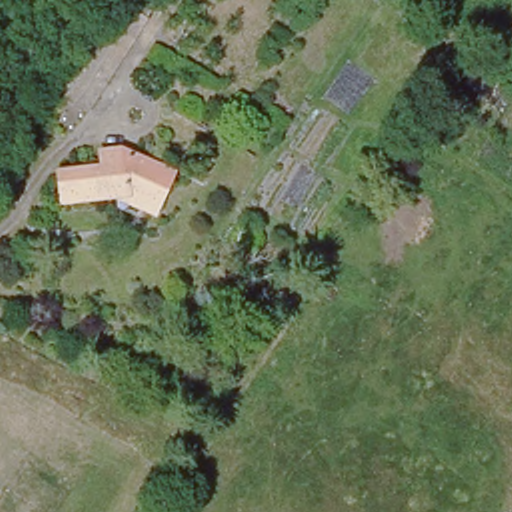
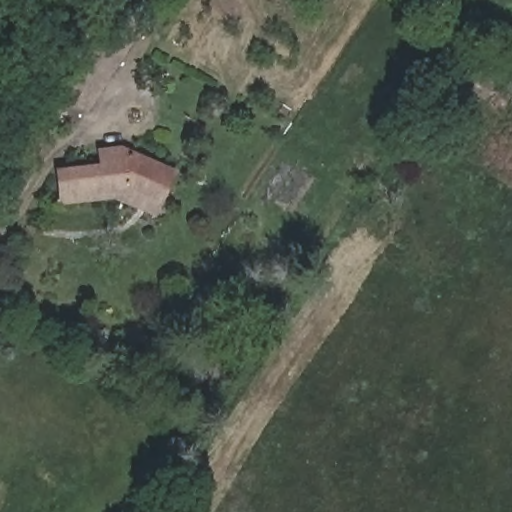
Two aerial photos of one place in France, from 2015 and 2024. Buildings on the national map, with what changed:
unchanged [(65,92),(112,0),(121,0),(143,12),(85,111),(65,92)]
unchanged [(95,158),(119,158),(160,176),(147,208),(117,194),(117,200),(55,199),(55,172),(94,173),(95,158)]

